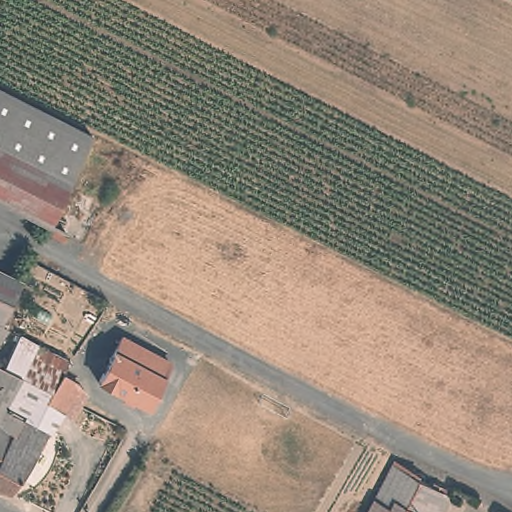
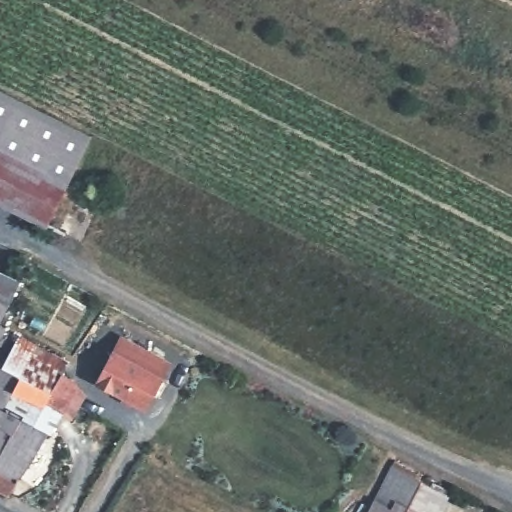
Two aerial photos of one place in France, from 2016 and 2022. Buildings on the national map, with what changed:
unchanged [(67,182),(0,148),(0,89),(90,136),(67,182)]
unchanged [(46,225),(0,201),(0,148),(67,182),(46,225)]
unchanged [(0,268),(24,279),(5,318),(0,316),(0,268)]
unchanged [(17,334),(41,345),(23,374),(5,404),(0,410),(0,370),(1,370),(17,334)]
unchanged [(169,363),(146,407),(98,381),(121,338),(169,363)]
unchanged [(53,390),(23,374),(41,345),(44,347),(67,360),(71,355),(76,358),(66,374),(53,390)]
unchanged [(66,374),(84,384),(72,401),(40,447),(33,469),(11,492),(0,486),(0,410),(5,404),(23,374),(53,390),(66,374)]
unchanged [(440,512),(367,512),(380,484),(388,469),(392,462),(450,494),(440,512)]

